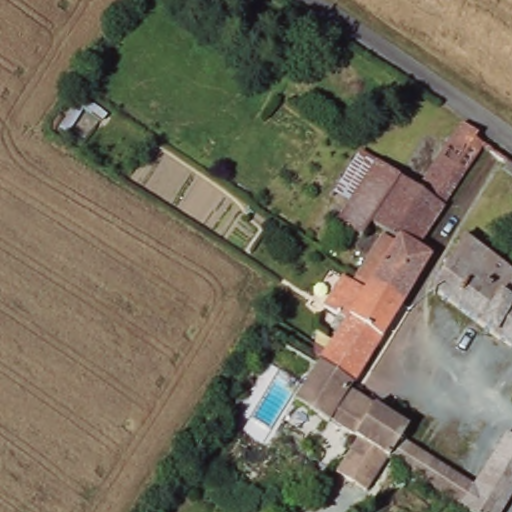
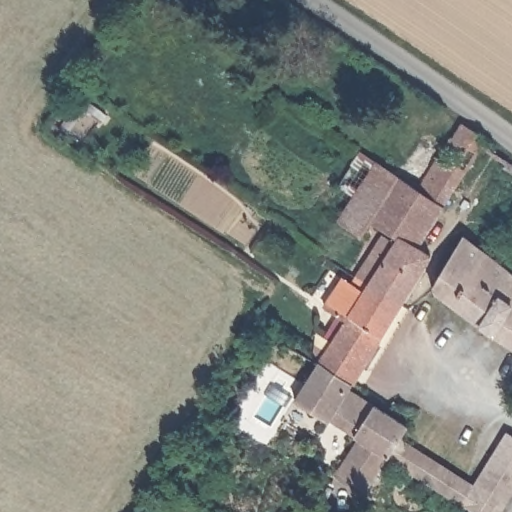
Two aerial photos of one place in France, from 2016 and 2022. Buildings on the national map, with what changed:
unchanged [(468,125),(481,135),(478,141),(490,148),(424,250),(435,258),(422,279),(410,299),(408,303),(375,283),(372,285),(360,278),(389,234),(373,224),(365,235),(341,219),(377,161),(421,191),(455,139),(457,139),(465,130),(468,125)]
unchanged [(360,150),(377,161),(341,219),(325,208),(360,150)]
unchanged [(506,339),(451,299),(438,290),(473,240),(512,271),(512,342),(506,339)]
unchanged [(372,285),(375,283),(408,303),(359,384),(325,363),(349,325),(325,308),(345,277),(356,284),(360,278),(372,285)]
unchanged [(325,363),(359,384),(353,394),(358,397),(414,431),(407,442),(395,463),(393,461),(363,442),(300,403),(325,363)]
unchanged [(465,506),(480,484),(512,436),(512,503),(506,512),(475,512),(465,506)]
unchanged [(393,461),(372,497),(339,478),(363,442),(393,461)]
unchanged [(480,484),(465,506),(395,463),(407,442),(480,484)]

